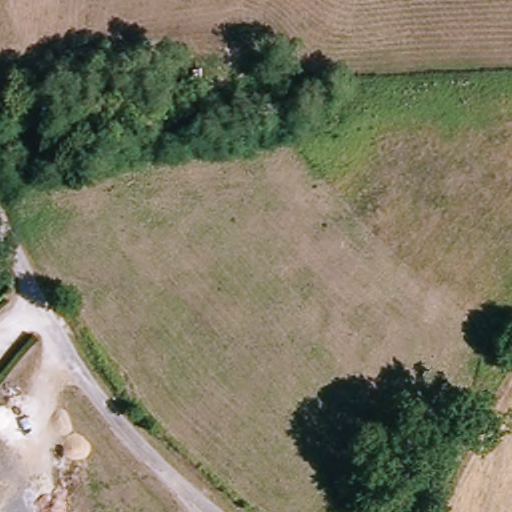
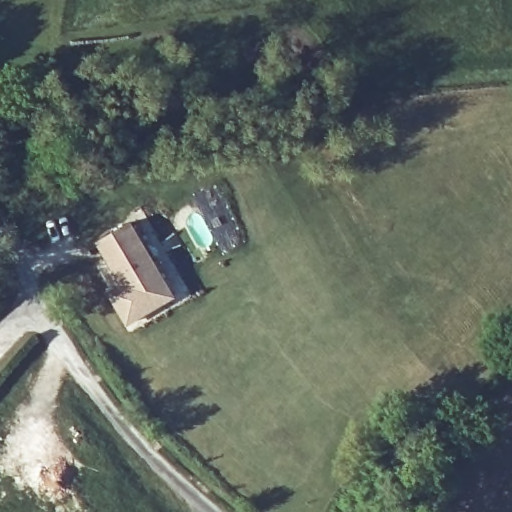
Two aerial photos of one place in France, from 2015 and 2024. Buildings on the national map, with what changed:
new [(130,220),(177,296),(126,327),(85,248),(130,220)]

